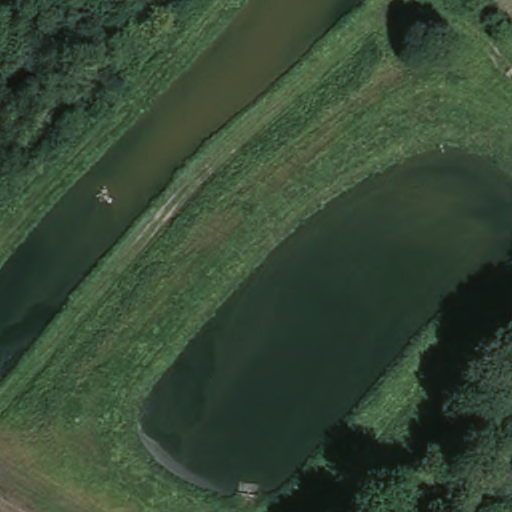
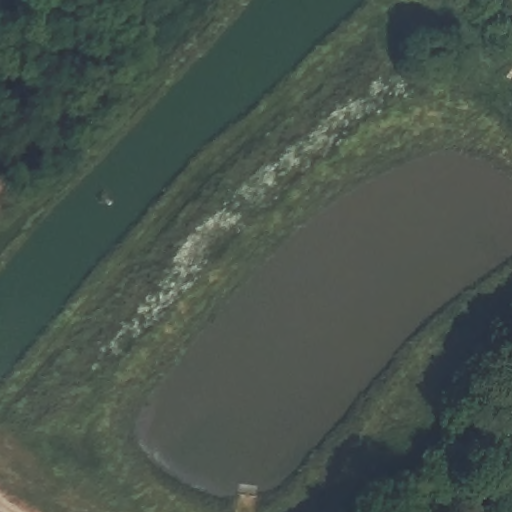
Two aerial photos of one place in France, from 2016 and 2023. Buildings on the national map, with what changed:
[]

